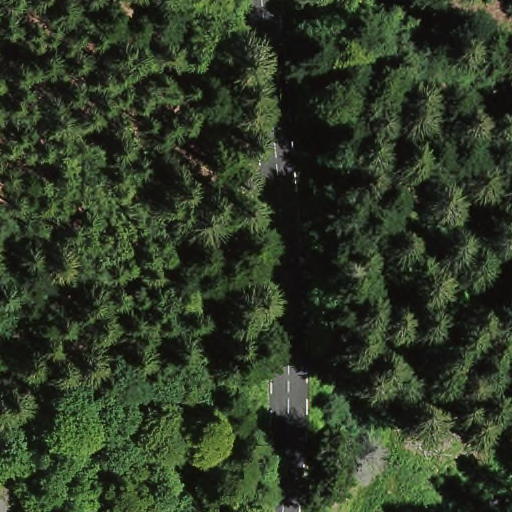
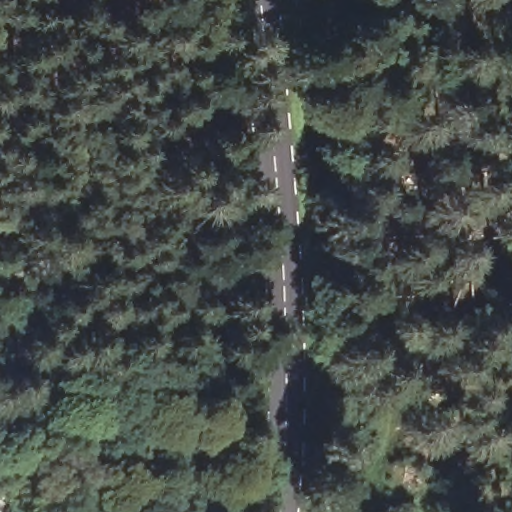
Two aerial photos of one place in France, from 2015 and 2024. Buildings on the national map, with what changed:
[]

